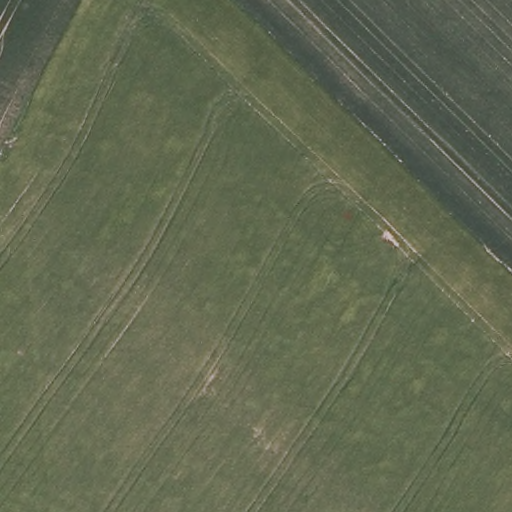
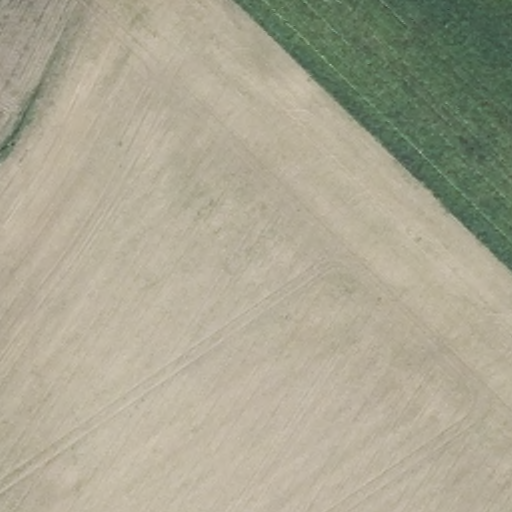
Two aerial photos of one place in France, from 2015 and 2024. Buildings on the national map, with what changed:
[]

